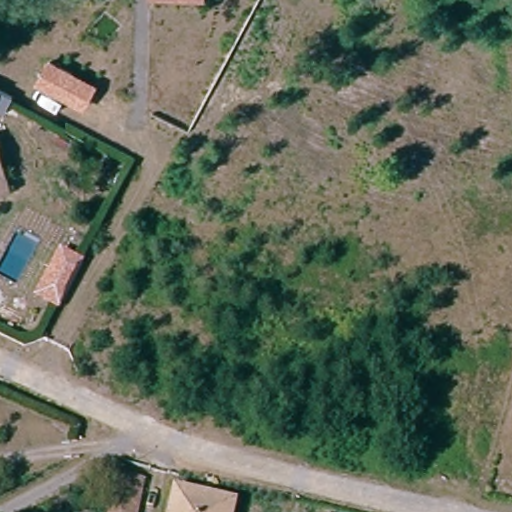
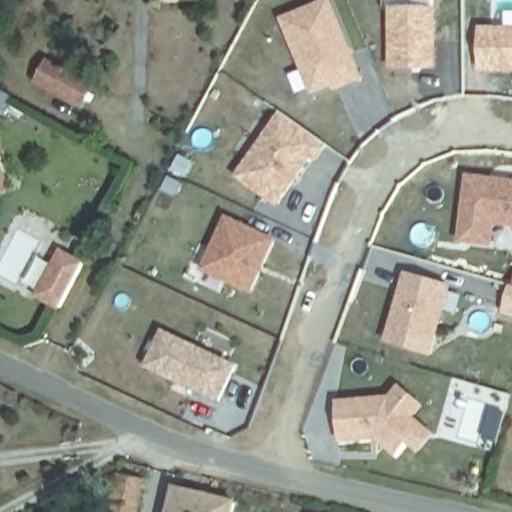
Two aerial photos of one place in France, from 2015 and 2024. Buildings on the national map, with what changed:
new [(332,0),(366,80),(333,94),(331,90),(310,98),(308,91),(295,95),(287,75),(300,69),(280,18),(322,0),(332,0)]
new [(438,4),(440,71),(390,72),(388,4),(438,4)]
new [(504,25),(503,10),(512,10),(512,74),(478,73),(478,25),(504,25)]
new [(50,62),(95,85),(84,107),(39,84),(50,62)]
unchanged [(16,96),(8,113),(0,109),(0,88),(16,96)]
new [(236,177),(280,111),(328,144),(318,161),(312,158),(278,205),(236,177)]
unchanged [(0,192),(0,163),(3,173),(9,189),(0,192)]
new [(466,174),(512,179),(512,225),(495,224),(492,244),(458,241),(466,174)]
new [(201,268),(226,214),(277,238),(252,292),(201,268)]
new [(36,294),(60,249),(82,261),(59,307),(36,294)]
new [(385,342),(405,272),(452,285),(431,357),(385,342)]
new [(512,283),(512,316),(503,314),(512,283)]
new [(145,366),(162,330),(235,365),(217,402),(145,366)]
new [(413,417),(435,433),(419,453),(406,444),(397,456),(375,439),(342,443),(337,401),(388,397),(399,385),(423,405),(413,417)]
unchanged [(130,512),(115,512),(122,472),(137,474),(130,512)]
unchanged [(233,512),(173,512),(177,492),(235,505),(233,512)]

